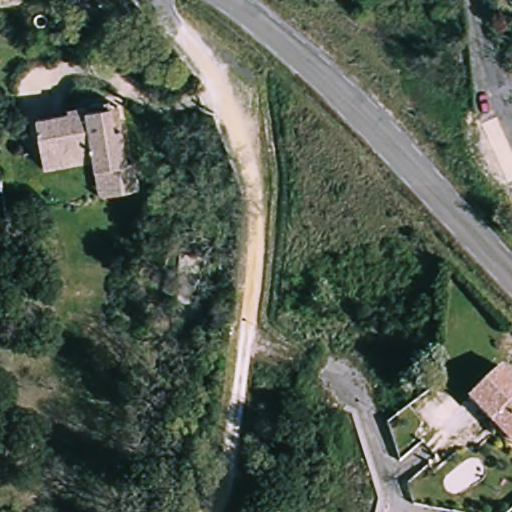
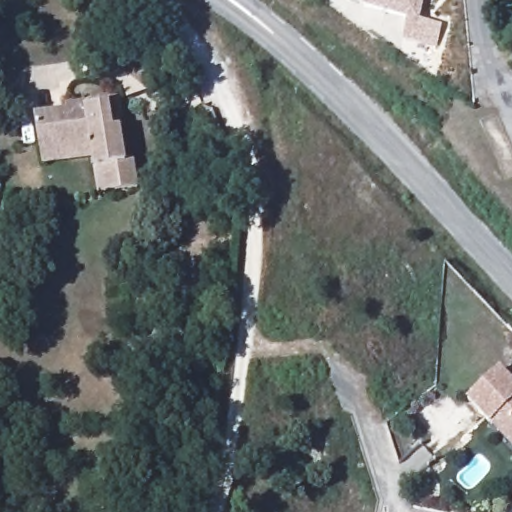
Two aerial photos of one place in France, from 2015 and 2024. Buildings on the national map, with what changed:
new [(441,26),(435,47),(401,40),(407,20),(364,10),(365,2),(357,0),(424,0),(419,20),(441,26)]
unchanged [(85,110),(103,110),(103,114),(119,114),(119,126),(125,126),(125,168),(132,168),(132,192),(97,194),(97,158),(50,159),(50,145),(50,115),(85,114),(85,110)]
unchanged [(512,441),(471,400),(504,369),(512,377),(512,441)]

